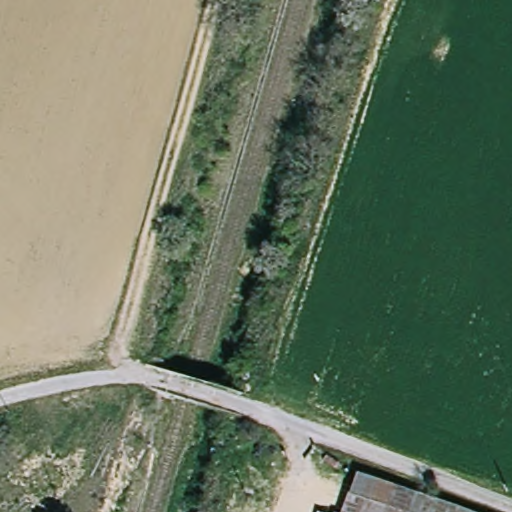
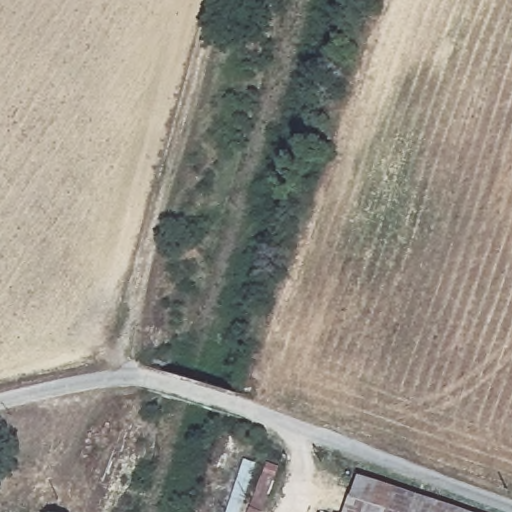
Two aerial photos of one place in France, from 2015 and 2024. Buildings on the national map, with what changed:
unchanged [(470,512),(354,512),(368,476),(470,512)]

